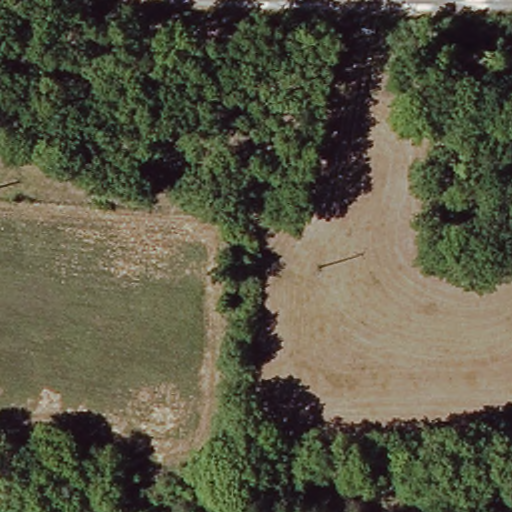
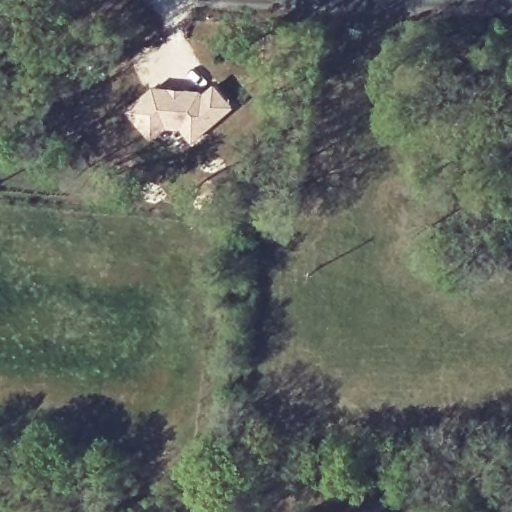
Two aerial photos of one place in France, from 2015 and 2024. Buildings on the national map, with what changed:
new [(154,89),(200,90),(203,94),(214,84),(232,104),(192,139),(182,126),(166,126),(152,139),(128,111),(154,89)]

